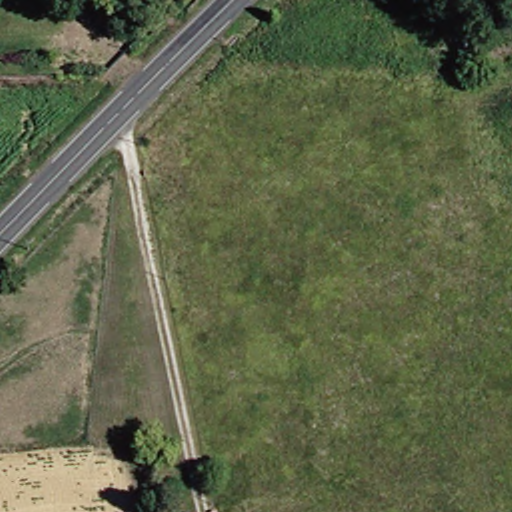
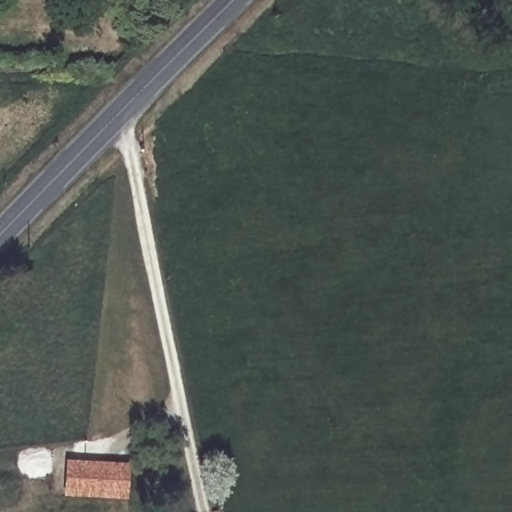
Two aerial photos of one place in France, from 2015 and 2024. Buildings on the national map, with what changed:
new [(66,461),(130,465),(128,500),(65,496),(66,461)]

